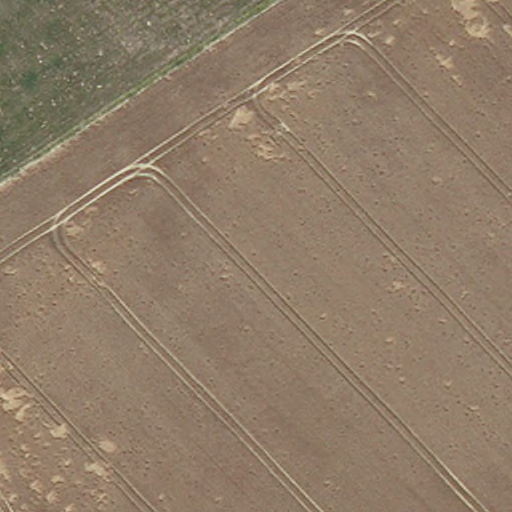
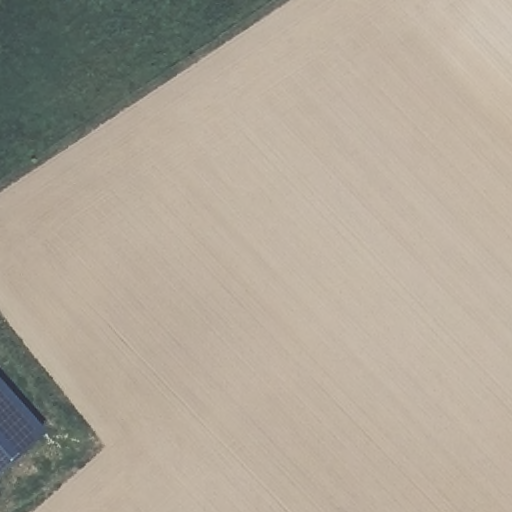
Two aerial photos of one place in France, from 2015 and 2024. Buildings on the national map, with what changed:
new [(0,470),(0,387),(42,433),(0,470)]

